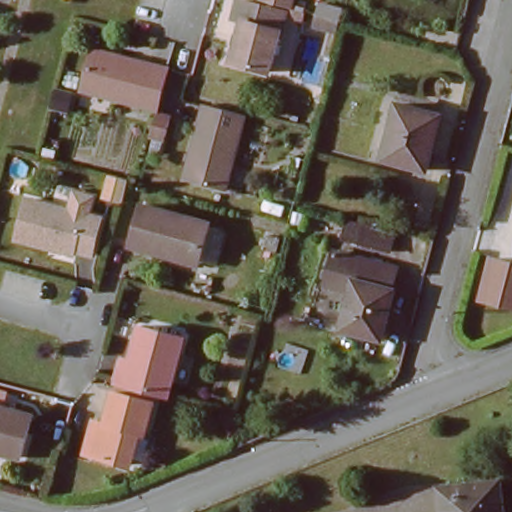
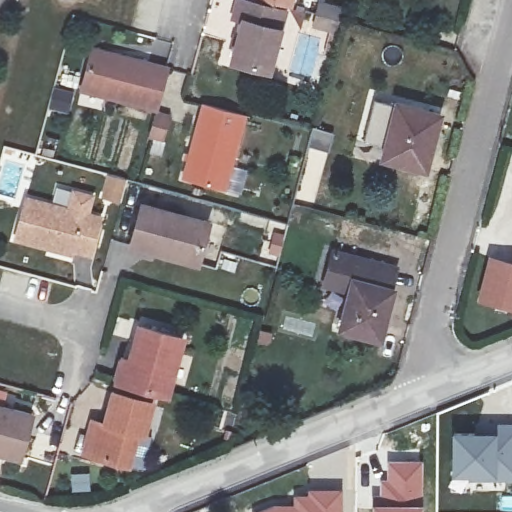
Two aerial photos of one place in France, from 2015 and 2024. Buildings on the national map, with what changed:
unchanged [(263,70),(224,59),(236,18),(227,16),(231,0),(237,0),(278,11),(263,70)]
unchanged [(267,0),(287,0),(286,5),(267,0)]
unchanged [(303,25),(307,11),(310,0),(318,0),(340,6),(337,15),(336,19),(332,34),(303,25)]
unchanged [(88,47),(161,68),(150,107),(77,86),(88,47)]
unchanged [(439,115),(424,171),(380,159),(395,104),(439,115)]
unchanged [(247,117),(225,193),(183,182),(205,106),(247,117)]
unchanged [(160,137),(143,133),(150,107),(168,111),(160,137)]
unchanged [(99,220),(89,257),(73,253),(72,257),(14,241),(25,200),(99,220)]
unchanged [(203,225),(192,265),(124,245),(135,205),(203,225)]
unchanged [(337,334),(346,300),(319,291),(330,250),(389,265),(399,268),(393,293),(378,345),(337,334)]
unchanged [(119,397),(134,340),(177,352),(161,409),(119,397)]
unchanged [(0,450),(0,406),(31,415),(20,455),(0,450)]
unchanged [(138,450),(129,447),(120,480),(83,470),(93,435),(99,437),(108,406),(148,417),(138,450)]
new [(450,430),(495,429),(495,421),(512,422),(512,480),(450,476),(450,430)]
new [(385,478),(386,458),(423,458),(423,497),(415,497),(415,501),(380,501),(379,478),(385,478)]
demolished [(440,512),(437,491),(492,485),(496,512),(440,512)]
new [(293,502),(293,492),(343,488),(343,512),(251,512),(251,511),(275,503),(293,502)]
new [(380,501),(415,501),(423,501),(422,512),(371,512),(371,501),(380,501)]

